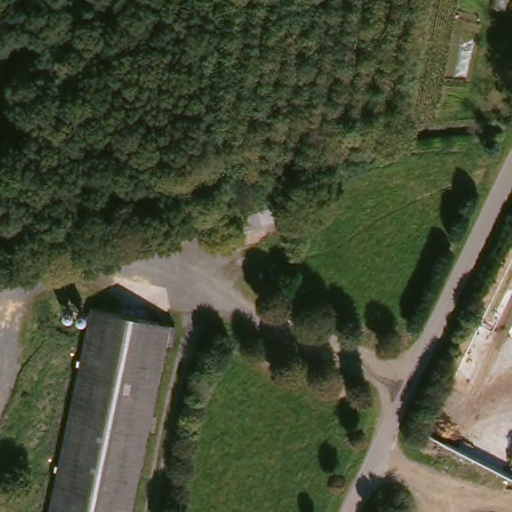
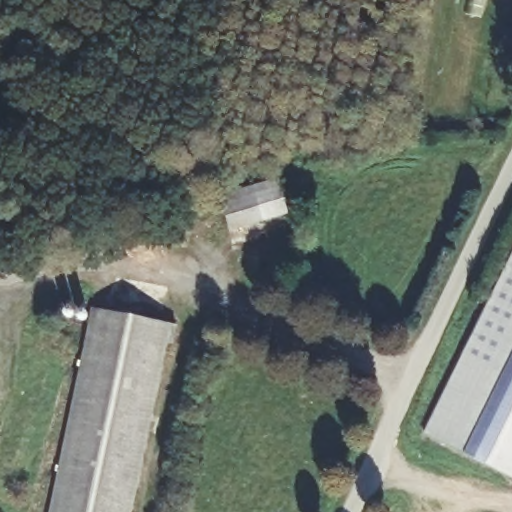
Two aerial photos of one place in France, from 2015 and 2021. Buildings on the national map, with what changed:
unchanged [(245,189),(283,175),(295,209),(256,222),(245,189)]
new [(422,434),(512,250),(512,478),(422,434)]
unchanged [(174,320),(133,512),(57,512),(101,306),(174,320)]

